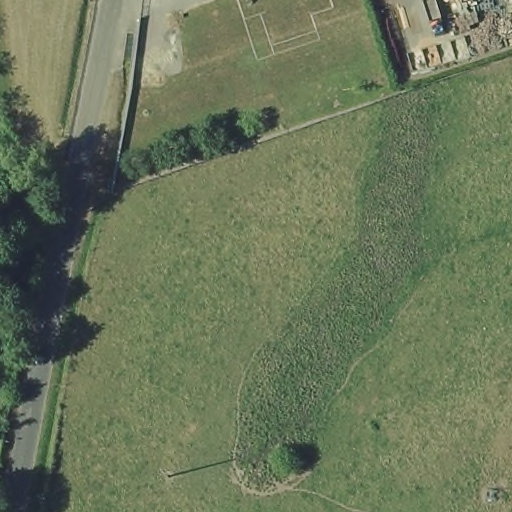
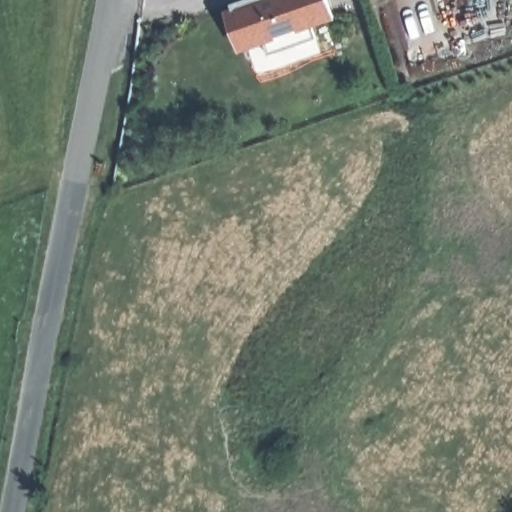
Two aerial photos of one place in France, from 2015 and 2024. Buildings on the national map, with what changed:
new [(245,0),(264,0),(265,3),(274,0),(327,0),(333,18),(312,25),(316,40),(268,55),(263,42),(246,47),(232,5),(245,0)]
new [(264,0),(274,0),(265,3),(264,0)]
new [(234,11),(246,47),(239,50),(227,14),(234,11)]

